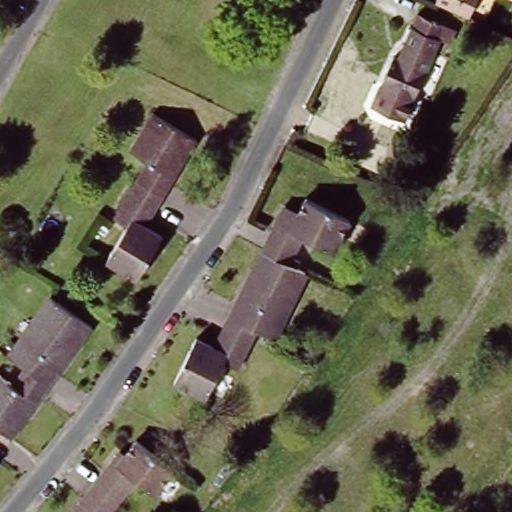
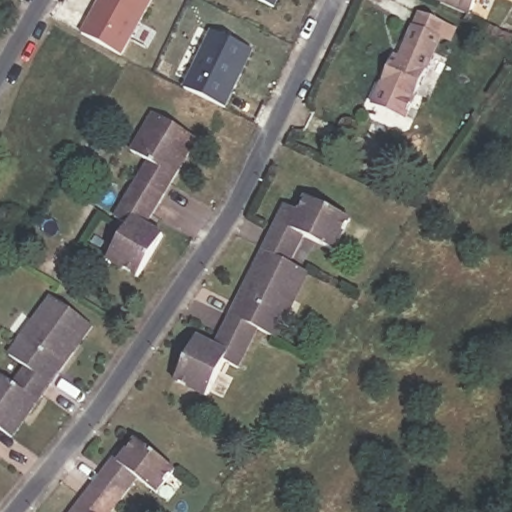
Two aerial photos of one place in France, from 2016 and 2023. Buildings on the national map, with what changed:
new [(156,0),(127,55),(86,34),(103,0),(156,0)]
new [(259,0),(282,0),(278,9),(259,0)]
unchanged [(431,0),(432,0),(475,0),(469,13),(431,0)]
unchanged [(414,98),(381,87),(393,60),(400,62),(419,16),(445,26),(414,98)]
new [(216,31),(257,53),(228,109),(186,87),(216,31)]
unchanged [(195,138),(185,156),(181,154),(176,163),(179,165),(161,194),(137,179),(148,161),(130,150),(152,113),(195,138)]
unchanged [(137,179),(161,194),(150,215),(146,213),(140,224),(162,238),(138,277),(108,259),(127,227),(114,219),(137,179)]
unchanged [(305,237),(290,265),(263,252),(282,213),(298,220),(308,200),(349,220),(334,251),(305,237)]
unchanged [(275,339),(257,329),(230,315),(246,285),(252,288),(260,274),(254,270),(263,252),(290,265),(311,275),(298,302),(290,298),(280,317),(285,319),(275,339)]
unchanged [(77,345),(72,342),(65,352),(70,356),(49,386),(22,368),(6,357),(17,341),(22,344),(35,324),(32,322),(50,298),(90,328),(77,345)]
unchanged [(205,398),(175,382),(196,340),(219,351),(225,341),(218,338),(230,315),(257,329),(235,370),(224,364),(205,398)]
unchanged [(24,413),(17,422),(21,425),(11,439),(7,436),(4,440),(0,437),(0,378),(10,385),(22,368),(49,386),(27,415),(24,413)]
unchanged [(85,484),(109,452),(112,455),(127,434),(169,465),(151,489),(132,474),(110,503),(85,484)]
unchanged [(85,484),(110,503),(104,512),(65,512),(85,484)]

